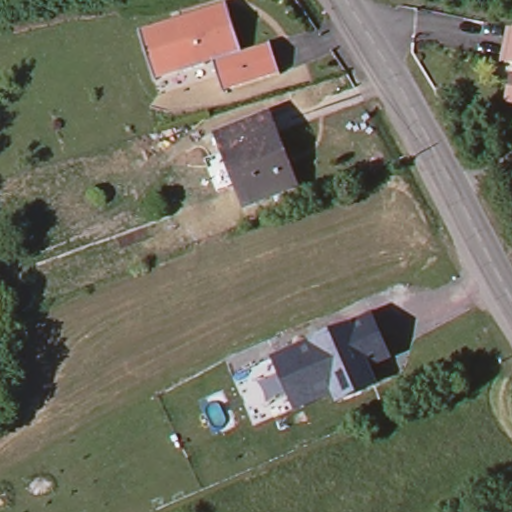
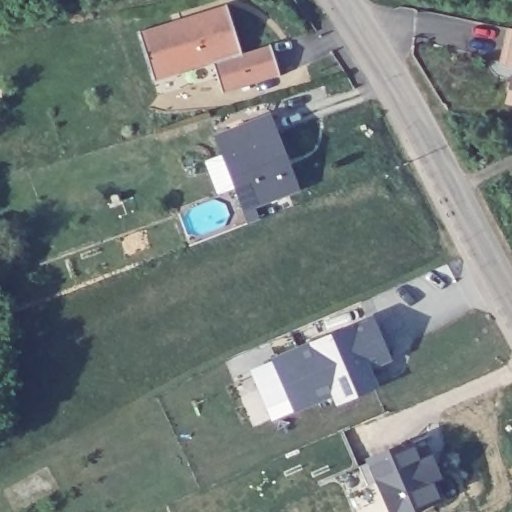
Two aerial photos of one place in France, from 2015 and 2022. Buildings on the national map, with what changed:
unchanged [(227,4),(242,52),(271,43),(279,70),(222,88),(212,60),(204,61),(204,64),(180,71),(177,69),(153,78),(139,30),(227,4)]
unchanged [(508,59),(512,40),(512,60),(508,59)]
unchanged [(219,139),(270,120),(285,159),(297,192),(287,194),(245,209),(219,139)]
unchanged [(385,344),(388,352),(368,360),(376,378),(342,393),(339,384),(299,401),(292,386),(278,352),(371,312),(385,344)]
new [(375,482),(367,485),(359,467),(368,463),(365,455),(403,439),(407,447),(414,444),(419,456),(432,450),(445,478),(437,481),(444,500),(416,512),(388,512),(375,482)]

